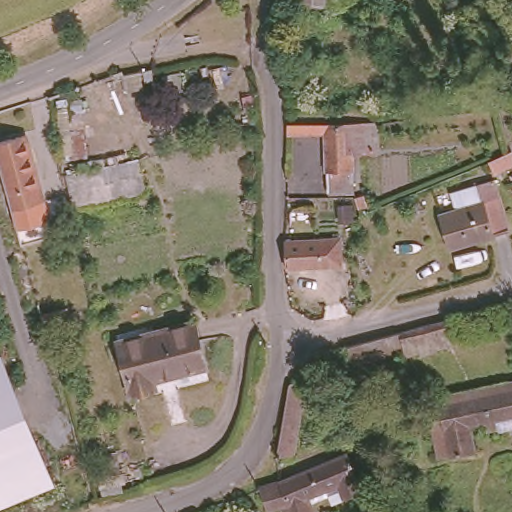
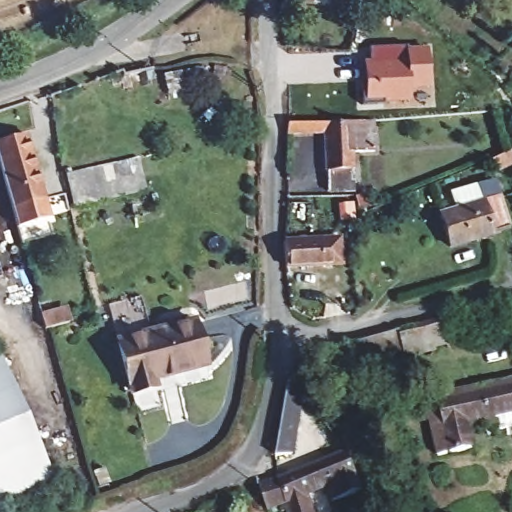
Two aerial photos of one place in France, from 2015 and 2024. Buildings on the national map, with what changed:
unchanged [(286,0),(334,0),(334,5),(286,0)]
new [(431,88),(410,89),(410,102),(383,104),(383,100),(365,102),(363,60),(370,60),(368,47),(405,46),(406,49),(427,47),(431,88)]
unchanged [(352,152),(353,191),(327,192),(325,133),(286,134),(287,122),(290,122),(373,122),(374,152),(352,152)]
unchanged [(0,167),(0,141),(25,135),(49,215),(16,226),(0,167)]
unchanged [(488,166),(510,155),(512,159),(512,167),(493,177),(488,166)]
unchanged [(65,175),(138,159),(145,192),(72,208),(65,175)]
unchanged [(492,237),(493,240),(473,246),(472,242),(449,250),(440,219),(482,207),(476,189),(493,184),(508,232),(492,237)]
unchanged [(286,267),(285,242),(338,239),(340,263),(286,267)]
unchanged [(474,317),(471,305),(488,301),(491,312),(474,317)]
unchanged [(503,330),(498,310),(512,307),(512,327),(503,330)]
unchanged [(436,350),(420,354),(419,351),(405,355),(404,348),(352,363),(347,346),(348,346),(451,317),(457,342),(435,347),(436,350)]
unchanged [(152,380),(155,387),(131,393),(117,342),(193,321),(205,365),(152,380)]
unchanged [(0,362),(5,361),(55,481),(0,503),(0,362)]
unchanged [(495,412),(497,422),(486,424),(484,415),(469,418),(475,444),(438,451),(429,408),(441,405),(440,402),(432,403),(430,392),(481,382),(491,380),(512,376),(512,409),(495,412)]
unchanged [(296,452),(295,453),(293,454),(291,455),(280,456),(293,383),(295,382),(297,382),(300,383),(301,384),(305,389),(307,392),(297,451),(296,452)]
unchanged [(332,497),(329,488),(308,497),(313,512),(290,512),(288,505),(282,507),(281,502),(266,506),(259,482),(258,481),(277,476),(346,447),(347,450),(352,462),(361,486),(332,497)]

